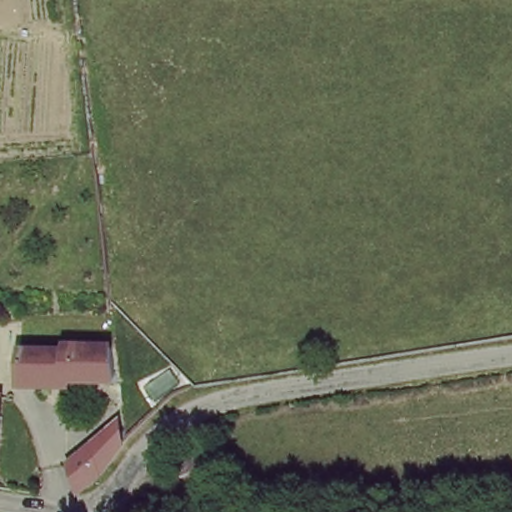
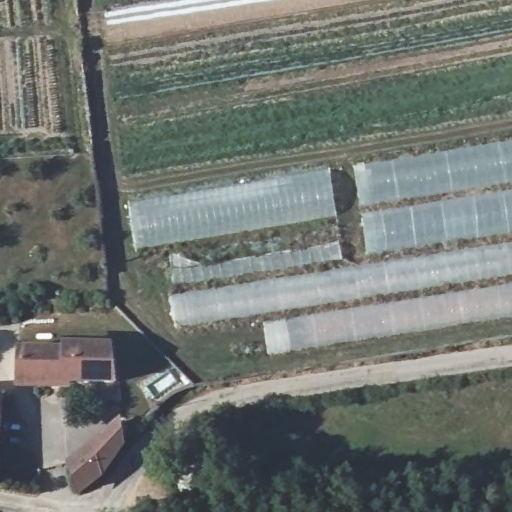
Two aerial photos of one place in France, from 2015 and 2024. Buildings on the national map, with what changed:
new [(328,168),(336,216),(134,250),(127,202),(328,168)]
new [(176,330),(167,253),(337,227),(345,270),(368,264),(362,213),(512,189),(512,316),(269,357),(262,315),(176,330)]
unchanged [(16,356),(64,361),(65,350),(112,354),(115,389),(14,387),(16,356)]
unchanged [(132,442),(85,491),(75,457),(129,415),(132,442)]

